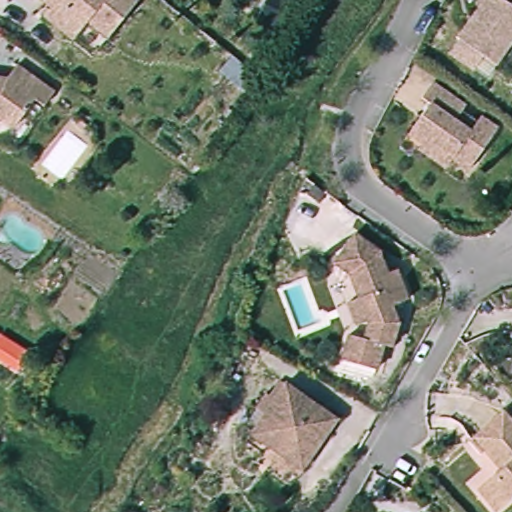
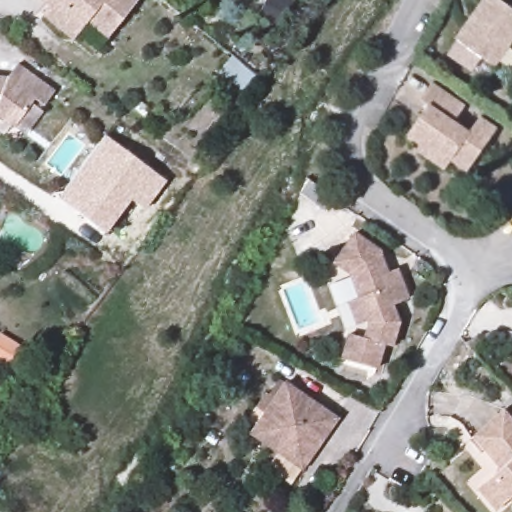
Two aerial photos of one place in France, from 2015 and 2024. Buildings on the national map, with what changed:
unchanged [(72,37),(43,14),(51,5),(45,0),(135,0),(107,35),(93,53),(72,37)]
unchanged [(503,5),(512,11),(512,49),(497,71),(457,44),(487,0),(506,0),(503,5)]
unchanged [(0,118),(0,78),(8,79),(18,65),(55,93),(44,107),(35,100),(14,128),(0,118)]
unchanged [(421,149),(425,143),(412,134),(416,127),(427,113),(432,116),(438,107),(425,98),(436,82),(468,105),(458,120),(474,131),(484,116),(501,128),(471,170),(454,158),(448,168),(421,149)]
new [(132,200),(107,234),(58,199),(105,136),(166,182),(145,209),(132,200)]
unchanged [(345,299),(356,295),(347,273),(332,261),(353,233),(377,251),(385,272),(395,268),(406,298),(390,304),(396,322),(389,345),(381,343),(373,368),(339,358),(347,333),(362,337),(366,322),(365,318),(354,322),(345,299)]
unchanged [(281,382),(256,438),(312,464),(308,473),(242,442),(271,378),(281,382)]
unchanged [(256,438),(281,382),(338,408),(312,464),(256,438)]
unchanged [(482,445),(475,436),(487,425),(504,410),(512,418),(512,499),(499,510),(480,489),(503,468),(482,445)]

